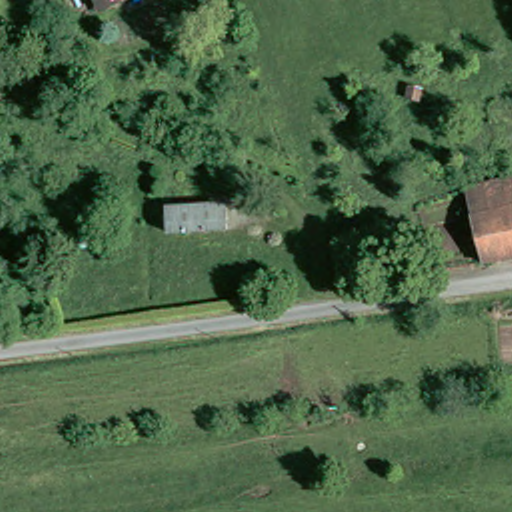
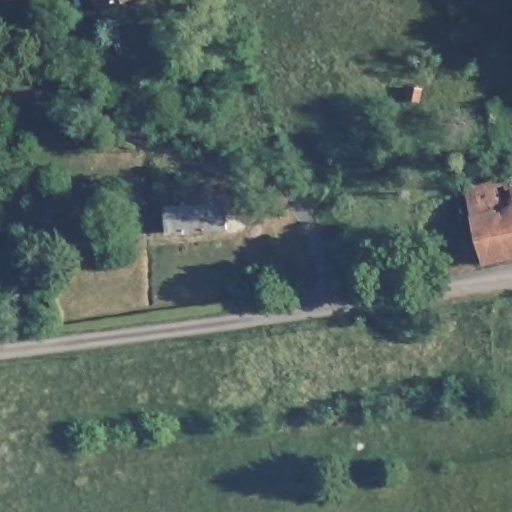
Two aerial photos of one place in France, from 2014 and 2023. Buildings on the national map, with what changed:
unchanged [(108,8),(103,0),(123,0),(108,8)]
unchanged [(473,215),(467,188),(512,178),(512,204),(473,215)]
unchanged [(229,202),(233,224),(174,231),(172,207),(229,202)]
unchanged [(485,263),(473,215),(512,204),(512,256),(485,263)]

